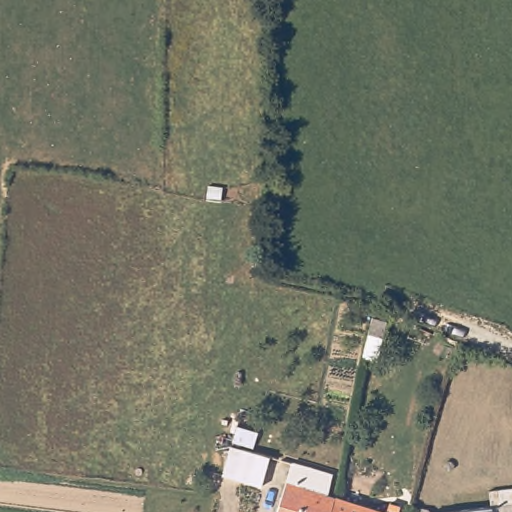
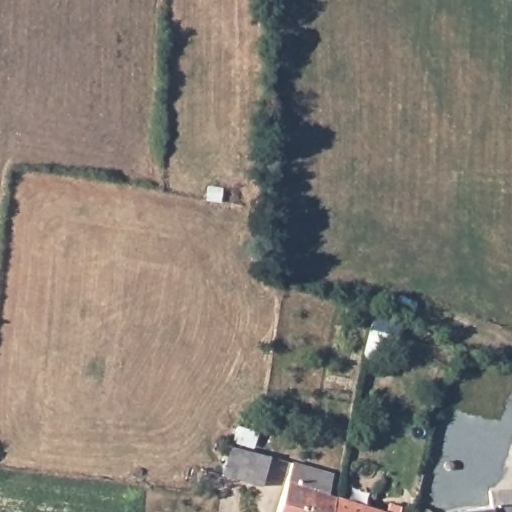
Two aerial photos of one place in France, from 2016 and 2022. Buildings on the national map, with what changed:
unchanged [(230,480),(240,450),(259,455),(265,457),(267,457),(257,487),(230,480)]
unchanged [(337,477),(331,495),(341,498),(338,512),(284,512),(297,463),(337,477)]
unchanged [(512,493),(512,512),(468,512),(500,510),(497,493),(512,493)]
unchanged [(380,512),(338,512),(341,498),(380,512)]
unchanged [(404,511),(404,512),(396,512),(397,510),(404,511)]

